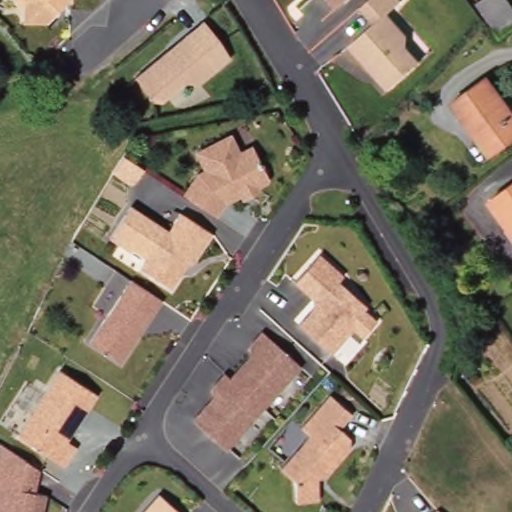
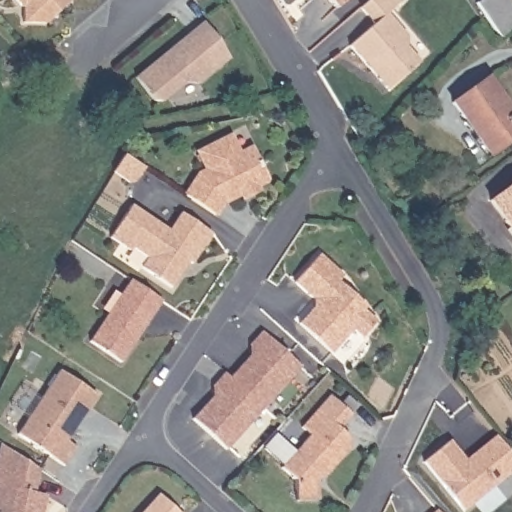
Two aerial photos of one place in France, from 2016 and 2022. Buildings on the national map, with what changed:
unchanged [(21,10),(10,0),(67,0),(67,2),(61,8),(43,26),(20,25),(21,10)]
unchanged [(337,8),(329,0),(346,0),(337,8)]
unchanged [(348,46),(373,24),(360,8),(369,0),(399,0),(401,2),(387,14),(407,36),(406,47),(419,62),(387,90),(377,79),(372,73),(348,46)]
unchanged [(507,36),(482,2),(485,0),(512,0),(512,33),(507,36)]
unchanged [(207,23),(222,42),(231,59),(199,84),(185,82),(159,101),(152,100),(135,78),(207,23)]
unchanged [(488,76),(512,110),(512,139),(491,154),(453,102),(488,76)]
unchanged [(246,197),(244,193),(225,202),(217,215),(187,196),(201,175),(209,170),(200,152),(232,136),(241,155),(255,147),(270,175),(267,180),(257,185),(260,190),(246,197)]
unchanged [(512,185),(512,231),(490,200),(512,185)]
unchanged [(174,289),(143,269),(149,259),(135,250),(132,253),(112,239),(132,207),(171,232),(183,214),(215,234),(194,265),(191,263),(185,272),(174,289)]
unchanged [(292,280),(318,253),(342,276),(337,281),(364,307),(361,311),(373,323),(358,339),(350,330),(327,354),(295,323),(311,307),(311,298),(292,280)]
unchanged [(132,276),(142,283),(164,297),(122,359),(91,338),(132,276)]
unchanged [(229,452),(195,422),(221,393),(215,388),(227,375),(232,380),(258,352),(252,347),(265,333),(303,369),(229,452)]
unchanged [(61,373),(99,398),(68,444),(77,451),(66,469),(18,437),(61,373)]
unchanged [(312,436),(303,428),(332,396),(354,416),(341,430),(351,439),(352,450),(326,479),(318,479),(319,501),(297,502),(296,481),(282,469),(312,436)]
new [(497,432),(512,454),(512,472),(462,510),(423,461),(451,439),(466,458),(497,432)]
unchanged [(25,462),(16,476),(14,488),(47,497),(44,512),(0,512),(0,509),(0,446),(6,450),(25,462)]
unchanged [(179,512),(138,512),(156,492),(179,512)]

